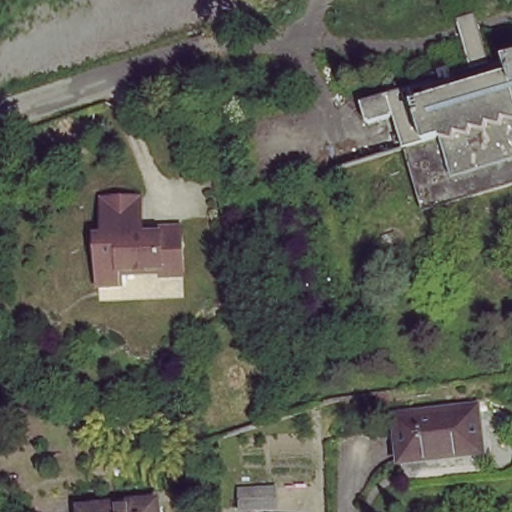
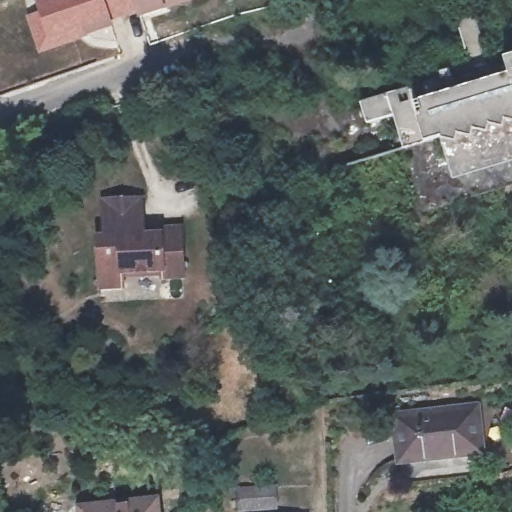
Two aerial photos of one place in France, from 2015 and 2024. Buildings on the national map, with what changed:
new [(163,6),(140,13),(138,7),(108,17),(111,24),(88,32),(85,23),(50,35),(38,2),(43,0),(178,0),(163,6)]
new [(50,35),(85,23),(88,32),(42,49),(30,17),(43,13),(50,35)]
unchanged [(426,224),(390,105),(512,65),(512,195),(426,224)]
unchanged [(189,292),(168,293),(167,286),(128,288),(129,304),(105,305),(103,254),(111,254),(108,217),(146,215),(149,247),(186,243),(189,292)]
unchanged [(486,457),(404,466),(402,421),(481,412),(486,457)]
unchanged [(243,512),(243,493),(274,491),(276,510),(254,512),(243,512)]
unchanged [(160,512),(97,512),(159,503),(160,512)]

